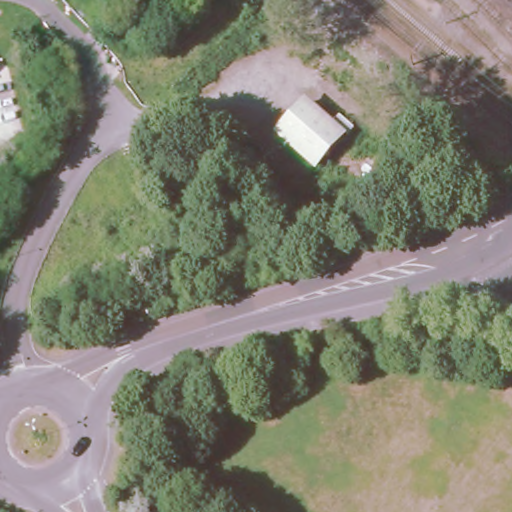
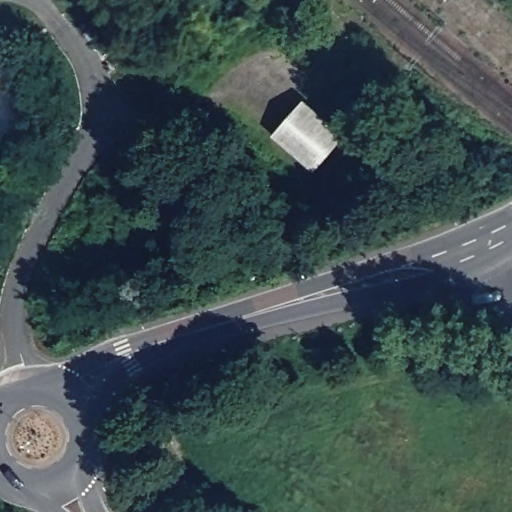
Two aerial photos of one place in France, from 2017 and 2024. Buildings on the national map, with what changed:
unchanged [(267,135),(305,99),(347,138),(310,175),(267,135)]

